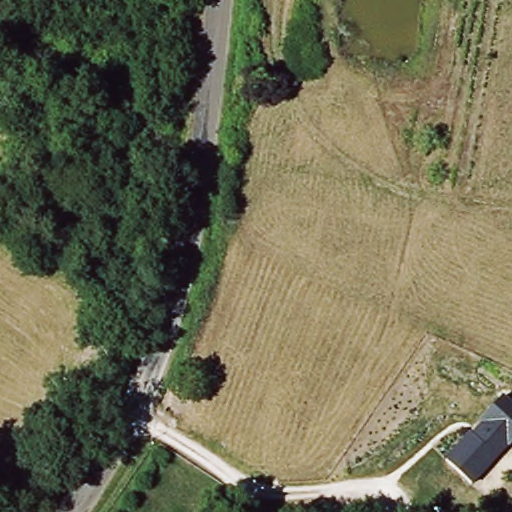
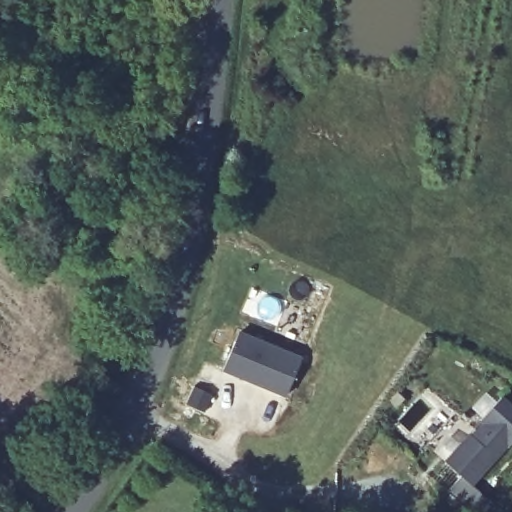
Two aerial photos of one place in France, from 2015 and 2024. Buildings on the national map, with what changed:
new [(302,357),(286,397),(222,371),(238,332),(302,357)]
unchanged [(504,392),(512,398),(512,443),(474,486),(444,459),(504,392)]

